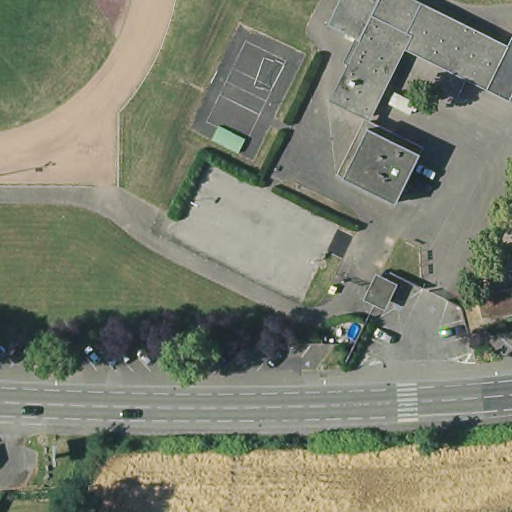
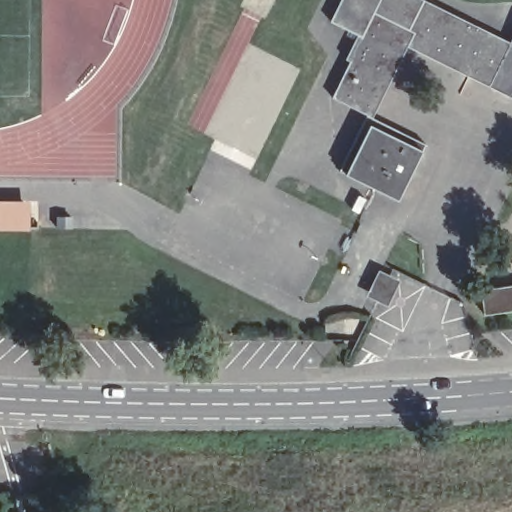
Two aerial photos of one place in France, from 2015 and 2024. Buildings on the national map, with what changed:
unchanged [(371,15),(360,38),(359,40),(327,25),(339,0),(378,0),(371,15)]
unchanged [(336,174),(364,117),(331,99),(348,63),(359,40),(360,38),(371,15),(378,0),(415,0),(421,2),(427,5),(508,43),(512,34),(512,94),(510,98),(406,48),(371,121),(424,147),(421,153),(394,205),(343,178),(336,174)]
new [(24,227),(0,226),(0,205),(25,206),(24,227)]
unchanged [(391,284),(384,296),(371,289),(378,277),(391,284)]
unchanged [(512,285),(512,311),(488,315),(484,290),(512,285)]

